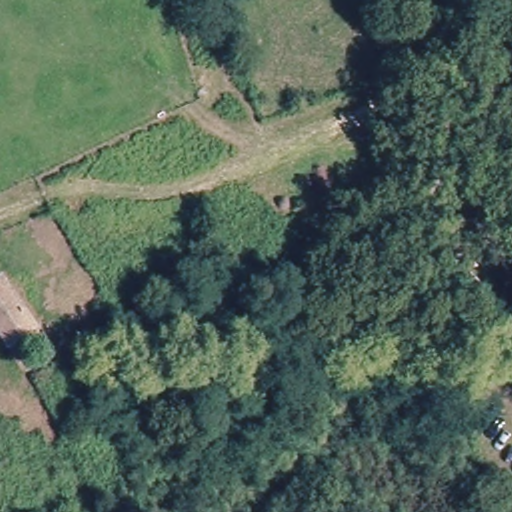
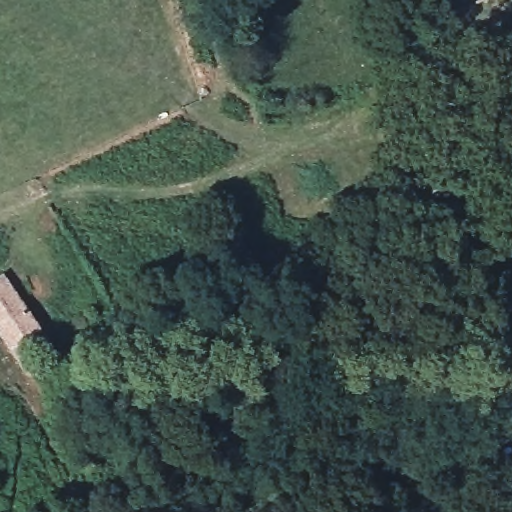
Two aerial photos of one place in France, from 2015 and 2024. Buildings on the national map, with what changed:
unchanged [(10,348),(0,333),(0,285),(35,333),(10,348)]

